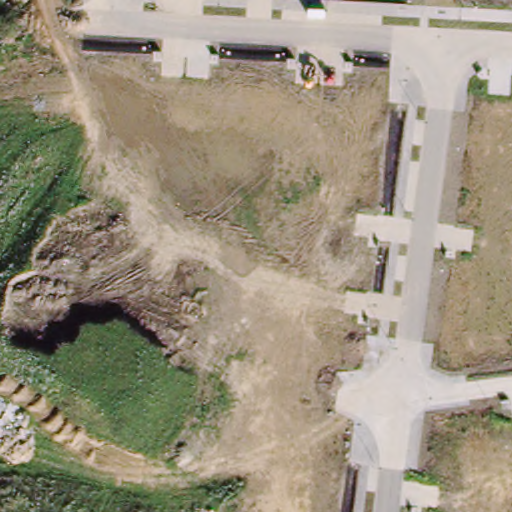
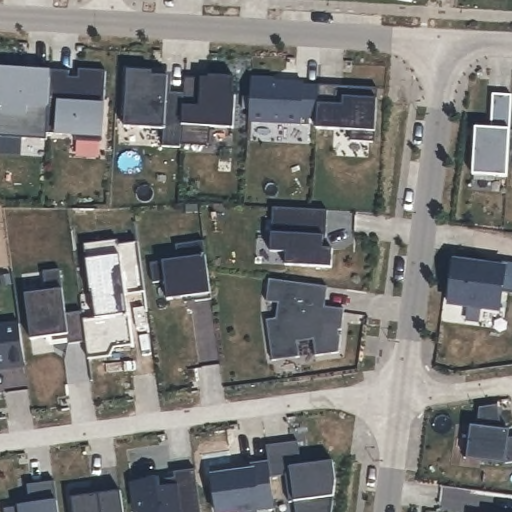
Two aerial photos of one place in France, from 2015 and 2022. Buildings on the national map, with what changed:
new [(390,0),(413,0),(412,4),(390,0)]
new [(17,69),(17,73),(28,74),(28,70),(50,70),(47,134),(47,140),(0,137),(0,111),(2,111),(2,102),(0,102),(0,68),(17,69)]
new [(50,70),(74,72),(73,83),(83,84),(83,70),(111,71),(107,141),(80,140),(80,135),(47,134),(50,70)]
new [(152,72),(168,73),(168,77),(167,93),(184,94),(182,145),(181,148),(163,147),(165,130),(125,127),(128,70),(152,72)]
new [(184,94),(185,77),(210,79),(210,75),(235,77),(233,95),(235,96),(234,128),(211,127),(210,146),(182,145),(184,94)]
new [(252,79),(275,80),(275,82),(303,84),(303,87),(319,87),(317,118),(302,117),(302,125),(250,121),(252,79)]
new [(319,87),(319,85),(337,86),(350,87),(377,89),(375,132),(317,129),(317,118),(319,87)]
new [(493,94),(512,95),(512,103),(507,176),(473,174),(477,112),(492,113),(493,94)]
new [(333,250),(332,268),(285,266),(287,254),(270,252),(273,209),(327,211),(326,238),(326,250),(333,250)]
new [(95,318),(92,292),(90,292),(84,245),(118,241),(118,245),(138,243),(145,292),(125,295),(132,345),(115,348),(110,356),(88,360),(83,320),(95,318)]
new [(185,298),(168,300),(165,282),(153,283),(150,263),(178,260),(176,245),(204,241),(212,300),(196,302),(186,303),(185,298)]
new [(505,276),(495,275),(496,270),(512,268),(512,299),(502,300),(505,276)]
new [(46,292),(43,272),(60,270),(65,315),(82,312),(86,342),(69,345),(68,340),(53,341),(52,337),(31,340),(25,295),(46,292)]
new [(505,276),(500,319),(448,312),(454,270),(505,276)]
new [(277,319),(278,303),(267,302),(270,280),(328,288),(325,307),(345,310),(342,330),(338,330),(336,335),(338,335),(335,353),(313,356),(311,340),(292,342),(294,358),(272,361),(267,320),(277,319)]
new [(20,324),(25,365),(0,369),(0,327),(20,324)]
new [(512,462),(504,463),(465,458),(470,425),(477,425),(479,406),(497,404),(501,427),(501,435),(508,437),(512,437),(512,462)]
new [(298,442),(302,465),(332,461),(335,496),(333,512),(298,512),(297,502),(292,501),(287,477),(270,480),(268,463),(267,447),(298,442)]
new [(232,468),(268,463),(275,508),(244,512),(218,512),(212,468),(232,466),(232,468)]
new [(160,496),(177,494),(175,479),(196,476),(201,512),(135,512),(132,491),(159,487),(160,496)]
new [(27,485),(55,482),(59,512),(5,512),(5,511),(30,508),(27,485)]
new [(93,495),(121,491),(124,512),(73,512),(70,491),(92,488),(93,495)]

